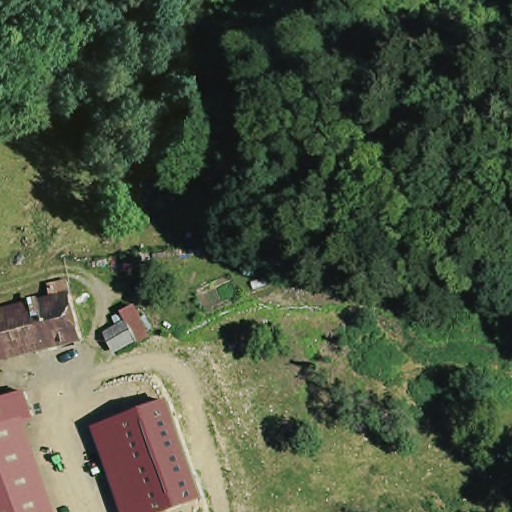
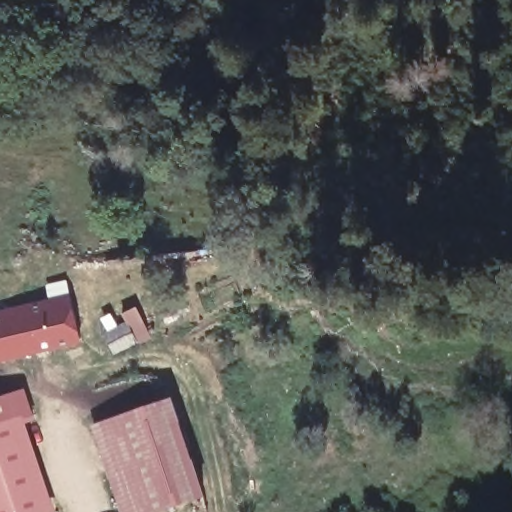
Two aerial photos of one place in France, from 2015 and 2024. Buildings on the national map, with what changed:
unchanged [(23,302),(50,296),(47,280),(66,276),(80,336),(35,347),(23,302)]
unchanged [(0,355),(0,308),(23,302),(35,347),(0,355)]
unchanged [(102,329),(126,318),(122,310),(138,302),(152,333),(137,340),(111,352),(102,329)]
unchanged [(167,512),(122,512),(94,426),(174,401),(206,499),(167,512)]
unchanged [(0,416),(12,412),(27,460),(0,468),(0,416)]
unchanged [(43,505),(22,512),(0,512),(0,468),(27,460),(43,505)]

